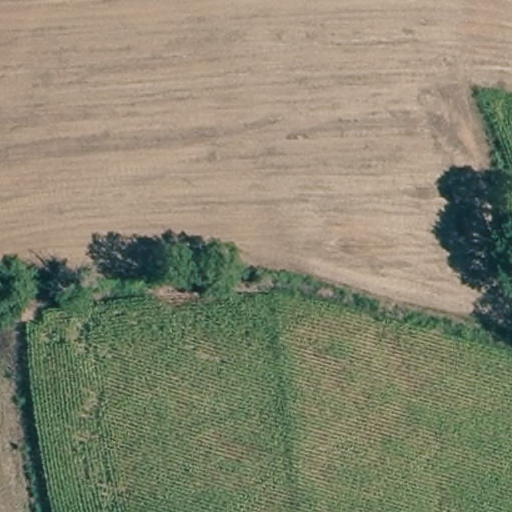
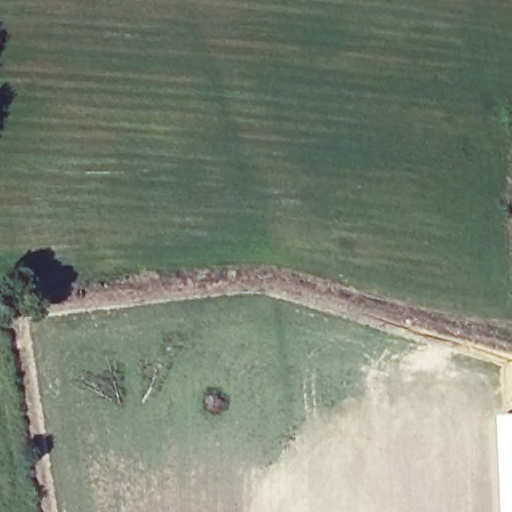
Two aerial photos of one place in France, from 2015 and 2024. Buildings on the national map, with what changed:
new [(492,512),(488,412),(512,412),(512,512),(492,512)]

